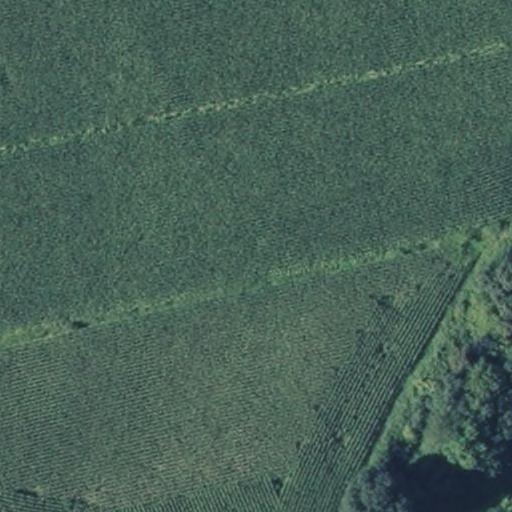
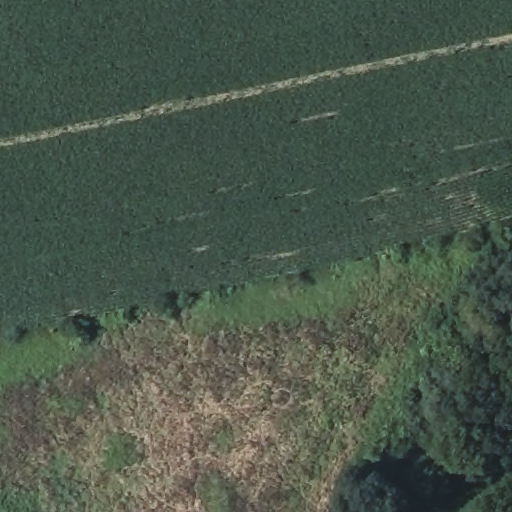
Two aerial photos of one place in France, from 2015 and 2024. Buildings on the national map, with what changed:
[]

